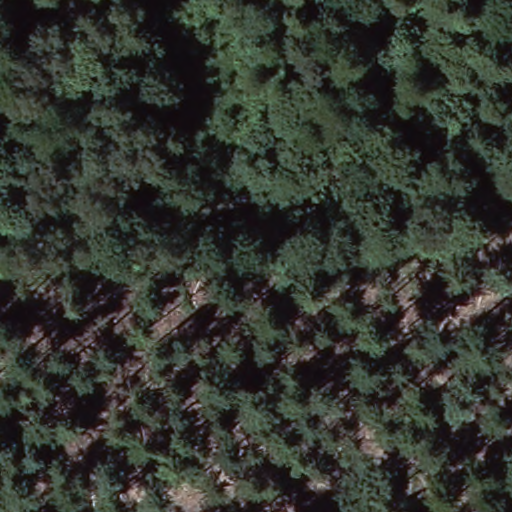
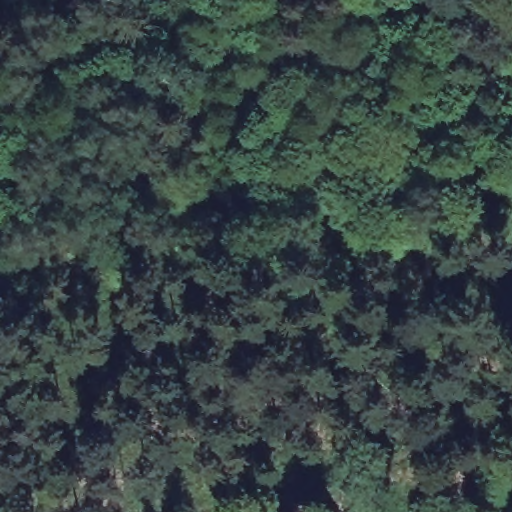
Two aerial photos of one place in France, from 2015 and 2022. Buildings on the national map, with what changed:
[]

